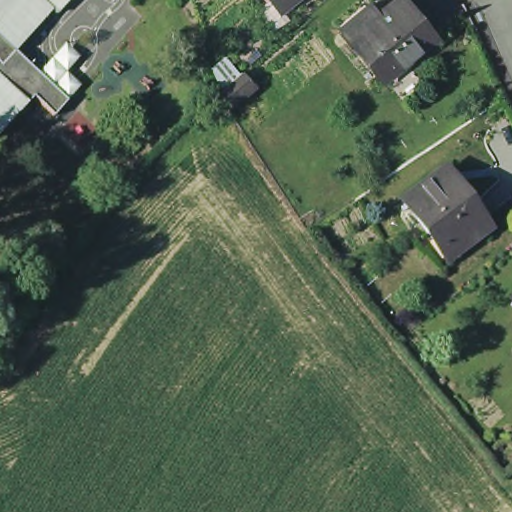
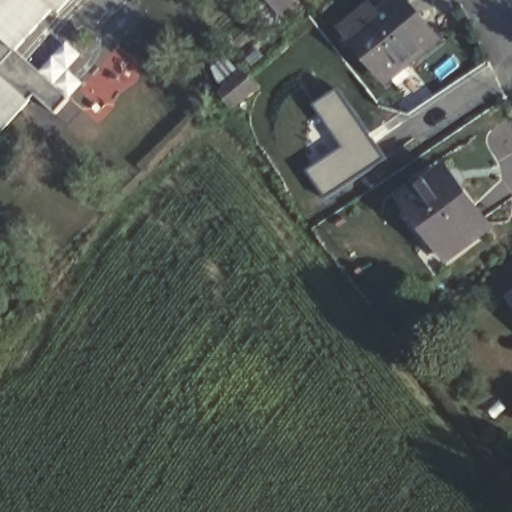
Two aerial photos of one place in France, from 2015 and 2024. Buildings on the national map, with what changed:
unchanged [(55,115),(35,97),(0,134),(0,0),(71,0),(58,13),(54,9),(16,49),(40,72),(69,99),(55,115)]
unchanged [(274,0),(292,0),(281,9),(274,0)]
unchanged [(373,13),(383,24),(406,6),(440,47),(390,87),(349,35),(373,13)]
unchanged [(243,71),(256,87),(230,107),(220,90),(243,71)]
new [(335,88),(383,158),(321,196),(305,171),(338,144),(312,105),(335,88)]
unchanged [(405,203),(406,203),(446,174),(484,226),(488,231),(448,261),(435,243),(405,203)]
unchanged [(512,292),(512,307),(505,298),(512,292)]

